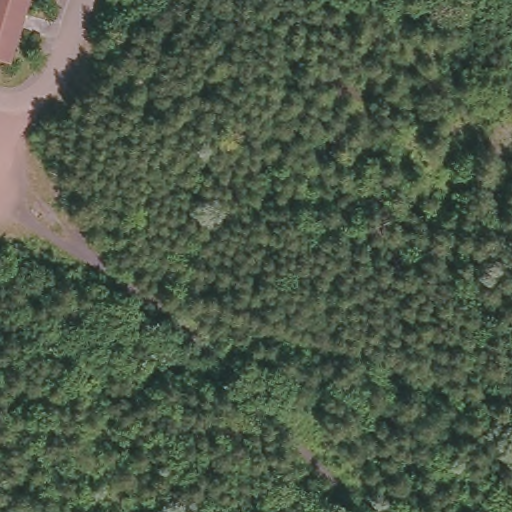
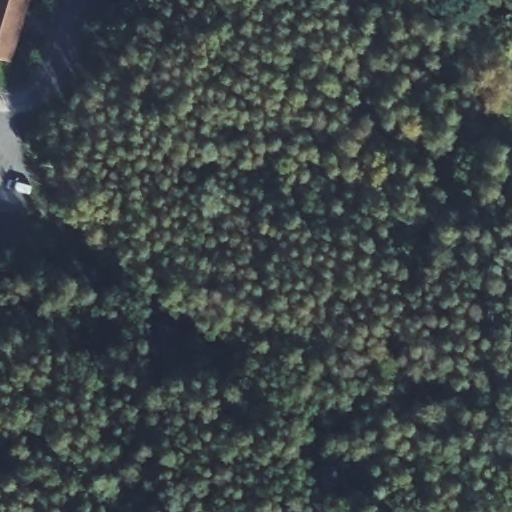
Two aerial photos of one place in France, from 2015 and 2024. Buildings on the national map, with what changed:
unchanged [(9,59),(0,56),(0,0),(26,0),(25,2),(23,10),(9,58),(9,59)]

